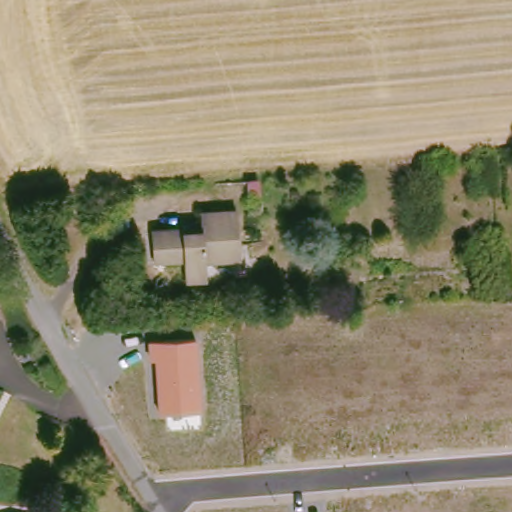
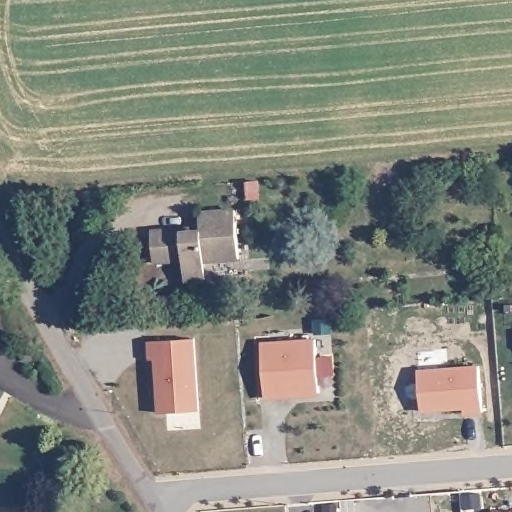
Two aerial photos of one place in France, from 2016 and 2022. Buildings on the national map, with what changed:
unchanged [(256,177),(256,178),(259,194),(246,196),(242,179),(256,177)]
unchanged [(180,228),(181,232),(203,231),(203,212),(238,209),(242,257),(205,259),(206,276),(184,277),(183,259),(156,260),(154,231),(180,228)]
unchanged [(196,337),(201,408),(158,411),(154,360),(149,360),(148,340),(196,337)]
new [(320,392),(301,393),(296,389),(286,390),(287,396),(266,398),(261,343),(316,339),(320,392)]
new [(418,370),(479,366),(483,411),(464,412),(464,407),(421,411),(418,370)]
new [(481,507),(464,509),(464,495),(480,494),(481,507)]

